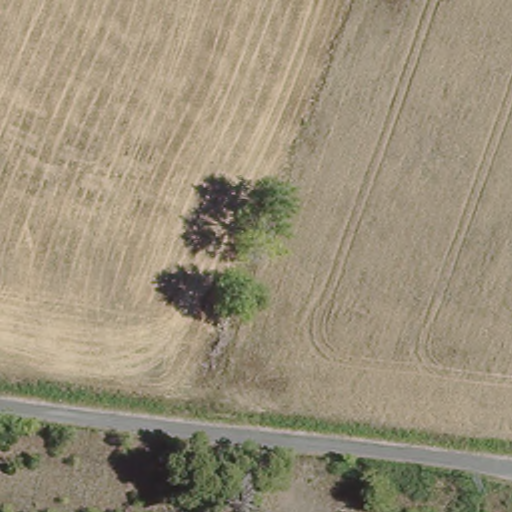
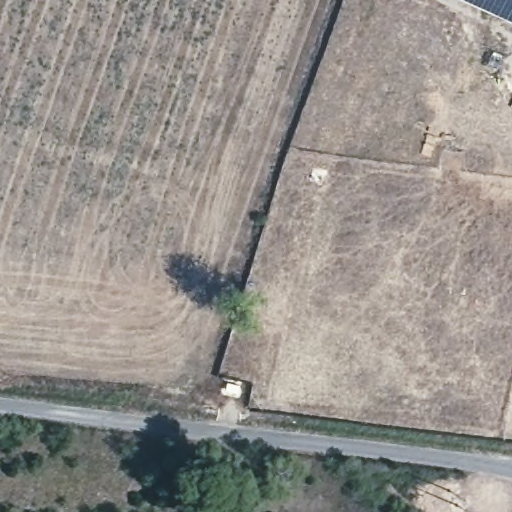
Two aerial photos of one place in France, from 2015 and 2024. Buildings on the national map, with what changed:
new [(473,0),(512,0),(512,18),(473,0)]

